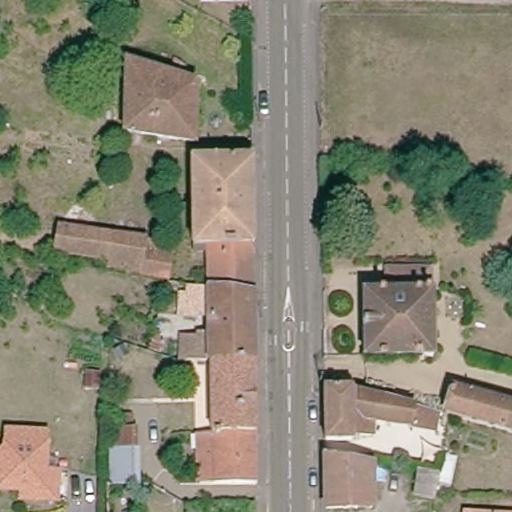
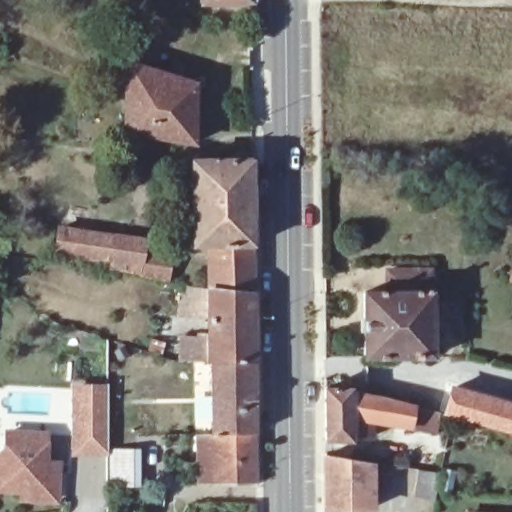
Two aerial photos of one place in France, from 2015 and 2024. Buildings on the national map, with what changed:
unchanged [(251,2),(200,3),(200,0),(251,0),(251,2)]
unchanged [(185,67),(182,79),(195,83),(194,143),(185,141),(125,132),(125,62),(169,75),(174,59),(185,67)]
unchanged [(254,243),(255,292),(209,287),(207,244),(192,244),(192,160),(252,159),(254,243)]
unchanged [(169,279),(140,274),(140,271),(107,266),(108,260),(55,252),(60,228),(60,226),(95,231),(136,236),(146,238),(145,248),(172,253),(169,279)]
unchanged [(433,356),(364,357),(363,292),(387,291),(387,270),(430,269),(430,291),(432,291),(433,356)]
unchanged [(255,292),(255,361),(210,362),(206,362),(181,360),(182,336),(209,338),(209,315),(190,315),(179,314),(181,292),(185,292),(185,284),(209,287),(255,292)]
unchanged [(129,355),(120,360),(115,351),(124,346),(129,355)]
unchanged [(211,433),(210,362),(255,361),(256,432),(211,433)]
unchanged [(451,382),(512,399),(512,429),(444,409),(451,382)]
new [(71,453),(70,383),(107,384),(107,454),(71,453)]
unchanged [(373,431),(353,432),(353,435),(325,436),(325,383),(351,383),(352,384),(352,385),(394,394),(396,394),(415,400),(437,407),(435,425),(411,421),(411,423),(391,419),(372,416),(373,431)]
unchanged [(115,478),(115,444),(116,423),(135,424),(135,444),(140,444),(140,479),(115,478)]
unchanged [(6,443),(6,426),(45,428),(44,468),(59,468),(57,495),(42,494),(21,493),(21,486),(11,485),(0,485),(0,448),(6,443)]
unchanged [(198,451),(197,433),(211,433),(256,432),(256,483),(214,483),(200,483),(198,451)]
unchanged [(367,508),(321,509),(321,454),(367,461),(367,508)]
unchanged [(428,499),(408,495),(412,470),(433,473),(428,499)]

